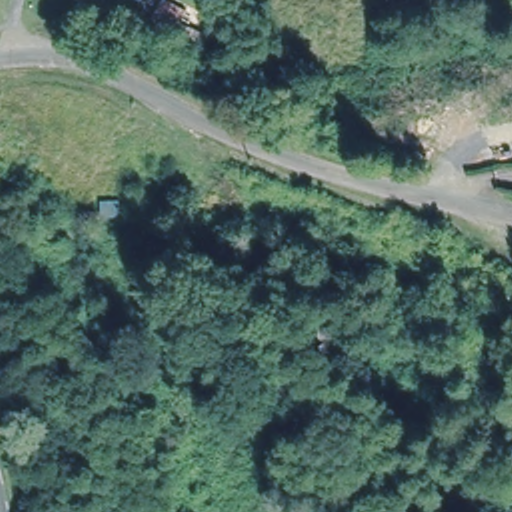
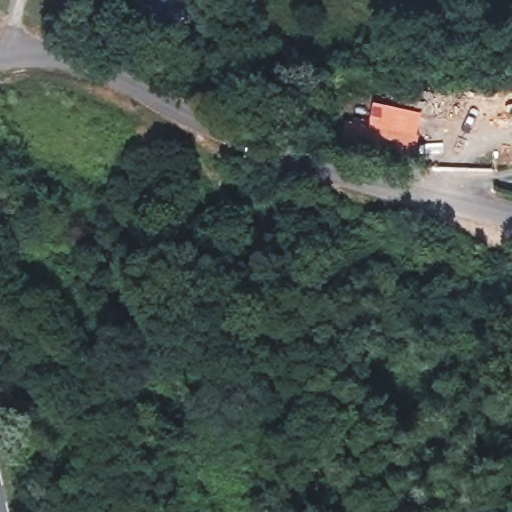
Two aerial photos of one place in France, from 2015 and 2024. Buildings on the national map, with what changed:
unchanged [(183,12),(177,24),(154,12),(160,1),(183,12)]

